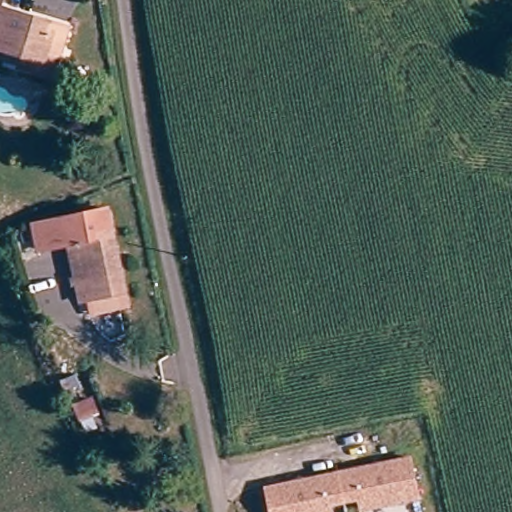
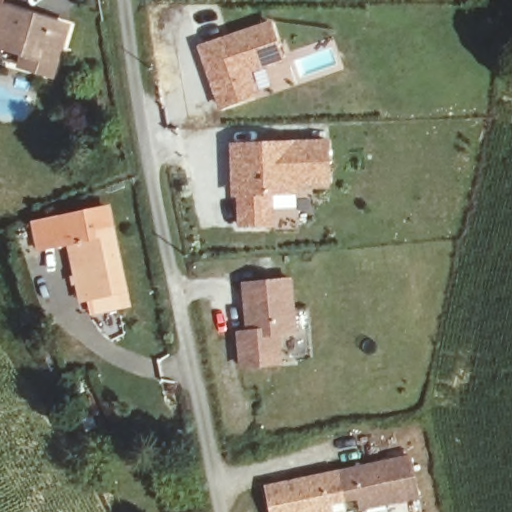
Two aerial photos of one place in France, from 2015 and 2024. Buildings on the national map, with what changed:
unchanged [(21,65),(23,56),(0,48),(0,0),(5,0),(3,5),(21,11),(69,26),(60,53),(54,74),(39,70),(21,65)]
new [(287,62),(253,74),(259,97),(219,111),(198,46),(273,19),(287,62)]
new [(333,185),(299,186),(299,195),(274,197),(274,226),(239,229),(239,202),(232,202),(230,145),(331,140),(333,185)]
unchanged [(83,299),(69,239),(43,245),(38,220),(64,216),(104,207),(126,302),(111,305),(85,310),(83,299)]
new [(298,334),(281,337),(284,365),(240,370),(236,332),(248,331),(244,283),(294,277),(298,334)]
unchanged [(414,453),(422,492),(367,505),(364,493),(349,497),(343,469),(414,453)]
unchanged [(338,511),(333,512),(278,512),(273,485),(343,469),(349,497),(335,500),(338,511)]

